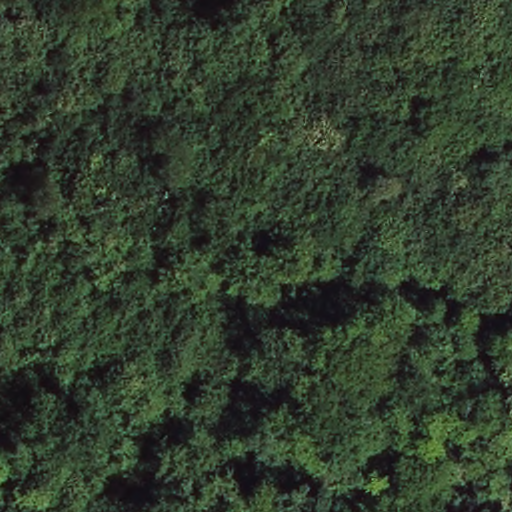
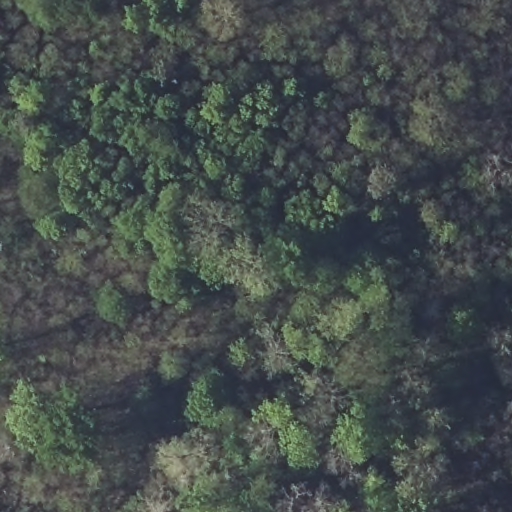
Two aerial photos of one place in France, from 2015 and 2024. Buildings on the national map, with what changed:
[]

